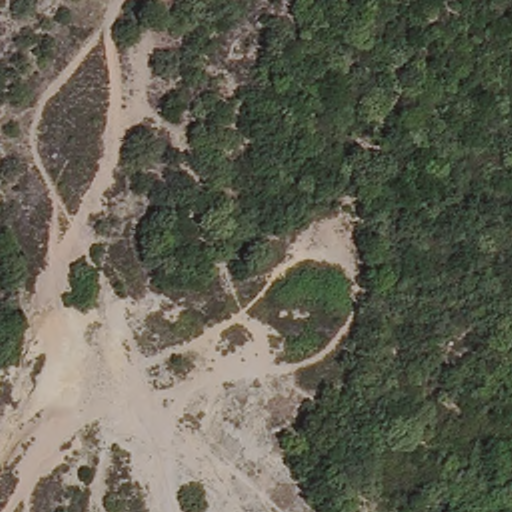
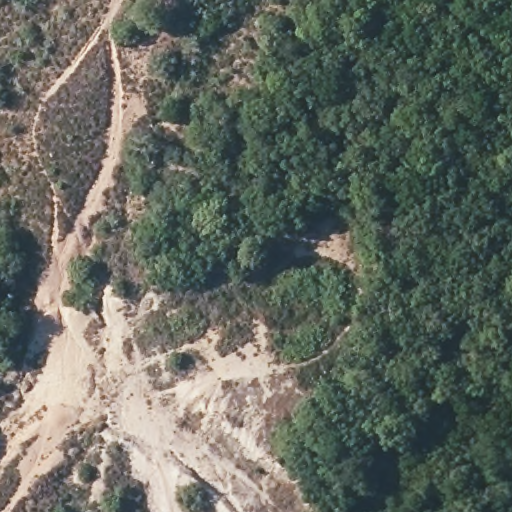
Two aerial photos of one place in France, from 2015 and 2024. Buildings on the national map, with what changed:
unchanged [(456,497),(440,512),(435,512),(421,496),(440,479),(456,497)]

